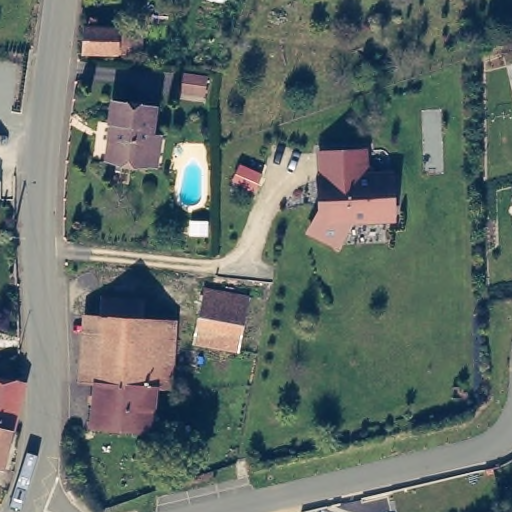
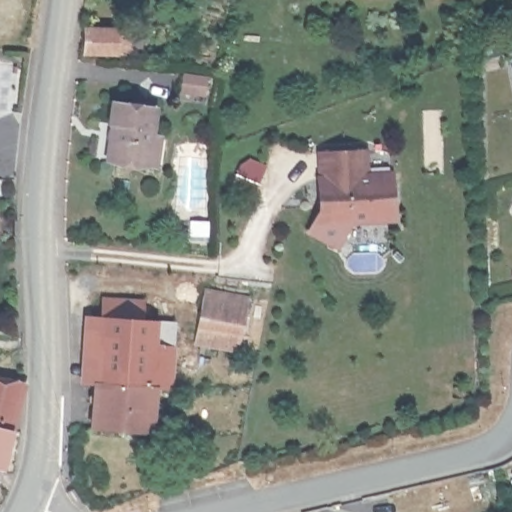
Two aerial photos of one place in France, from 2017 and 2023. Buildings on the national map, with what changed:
unchanged [(80,30),(113,30),(126,30),(126,55),(113,55),(79,55),(80,30)]
unchanged [(509,69),(512,68),(512,85),(509,69)]
unchanged [(211,79),(208,92),(199,90),(201,77),(211,79)]
unchanged [(151,166),(143,165),(101,155),(108,120),(105,119),(111,99),(154,108),(149,134),(158,136),(151,166)]
unchanged [(366,147),(366,172),(390,171),(394,224),(348,225),(339,251),(305,233),(315,210),(317,150),(366,147)]
unchanged [(242,298),(232,347),(194,341),(203,289),(242,298)]
unchanged [(103,297),(143,300),(142,318),(175,323),(168,386),(151,385),(147,430),(91,425),(95,380),(101,312),(103,297)]
unchanged [(95,380),(80,377),(84,311),(101,312),(95,380)]
unchanged [(0,463),(0,377),(16,380),(0,463)]

